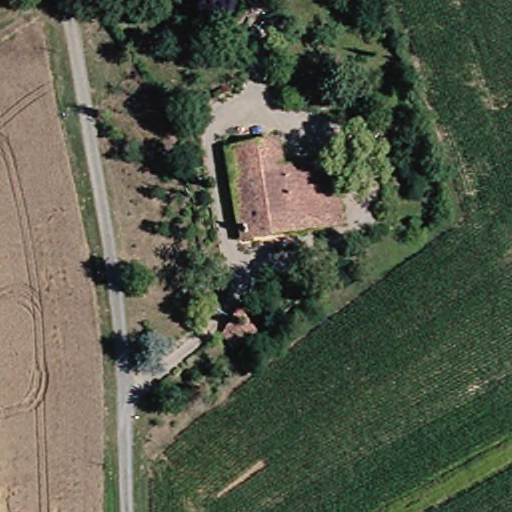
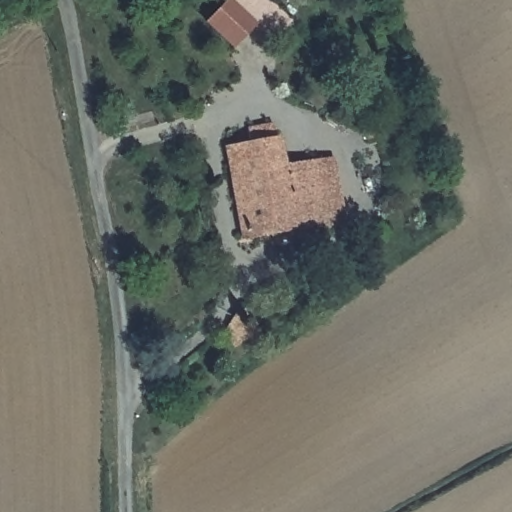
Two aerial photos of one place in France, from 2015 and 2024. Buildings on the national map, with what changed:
new [(256,27),(233,51),(204,24),(227,0),(256,27)]
unchanged [(254,235),(235,147),(282,140),(288,167),(319,163),(331,224),(254,235)]
unchanged [(337,160),(349,220),(331,224),(319,163),(337,160)]
unchanged [(256,310),(276,330),(249,345),(238,333),(256,310)]

